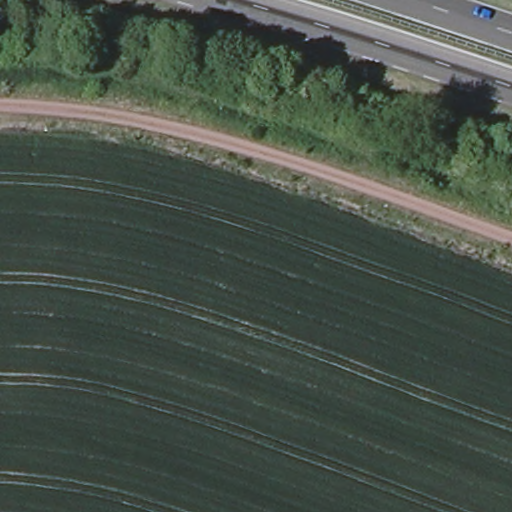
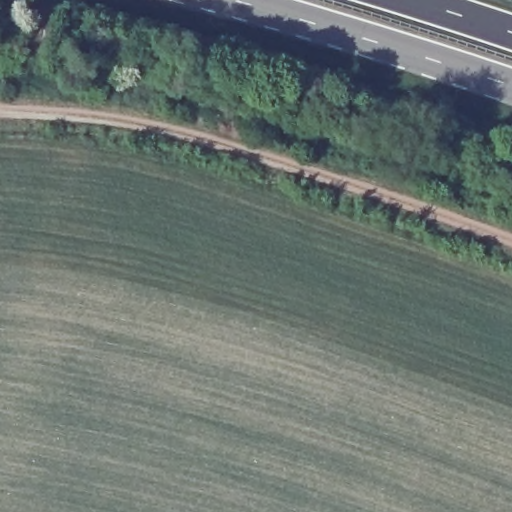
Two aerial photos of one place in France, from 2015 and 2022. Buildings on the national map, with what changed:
[]

